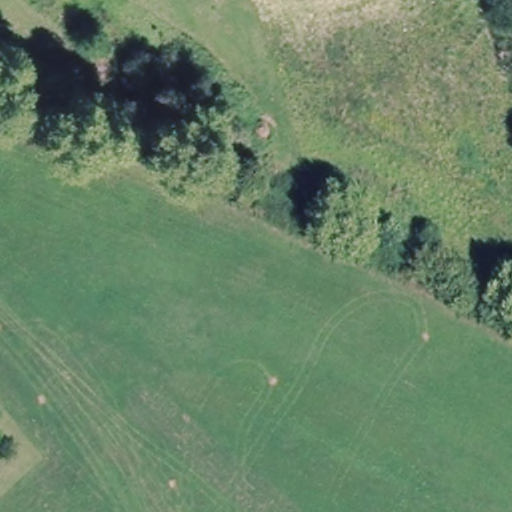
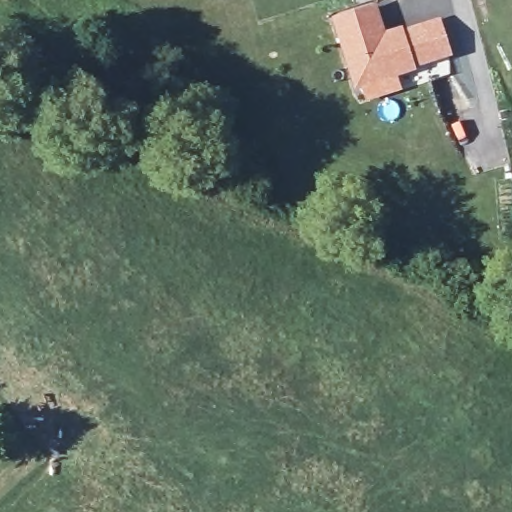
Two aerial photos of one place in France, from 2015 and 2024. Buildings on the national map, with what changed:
new [(332,19),(377,4),(385,32),(402,27),(403,29),(441,18),(453,57),(416,68),(416,71),(356,91),(332,19)]

